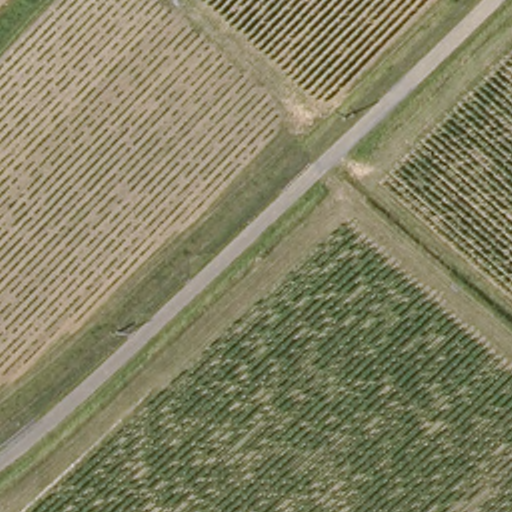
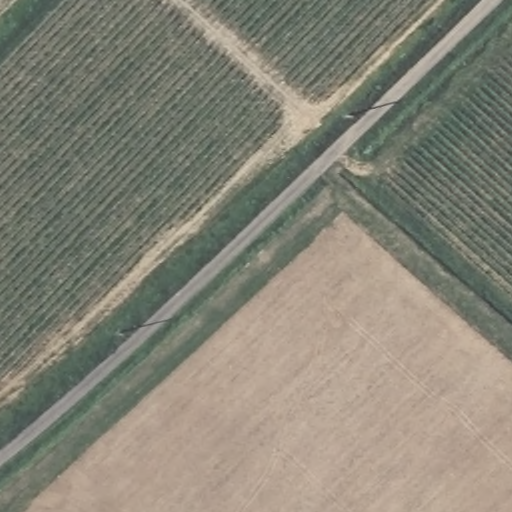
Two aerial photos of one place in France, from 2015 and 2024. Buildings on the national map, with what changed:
[]

